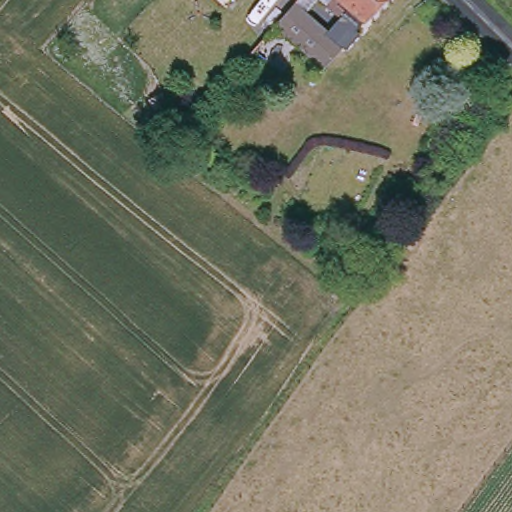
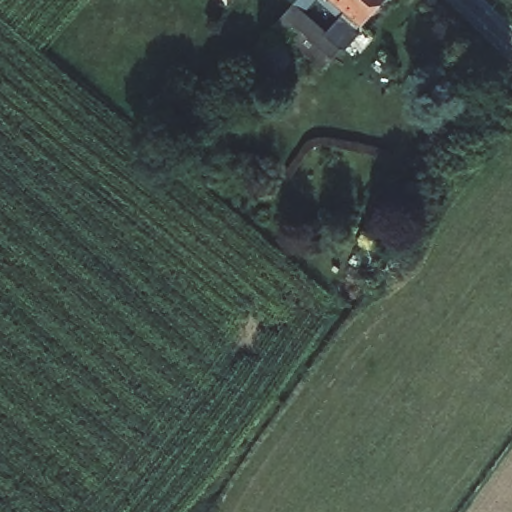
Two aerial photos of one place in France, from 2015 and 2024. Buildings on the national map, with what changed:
unchanged [(323,0),(306,19),(330,43),(345,26),(331,14),(339,5),(334,0),(386,0),(360,33),(361,44),(349,58),(342,54),(327,69),(322,75),(270,29),(276,21),(294,0),(323,0)]

